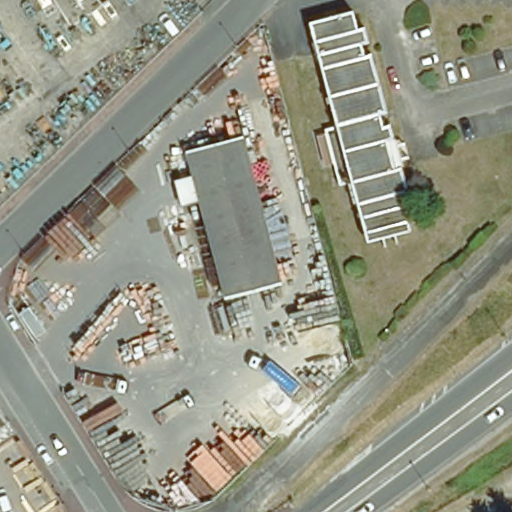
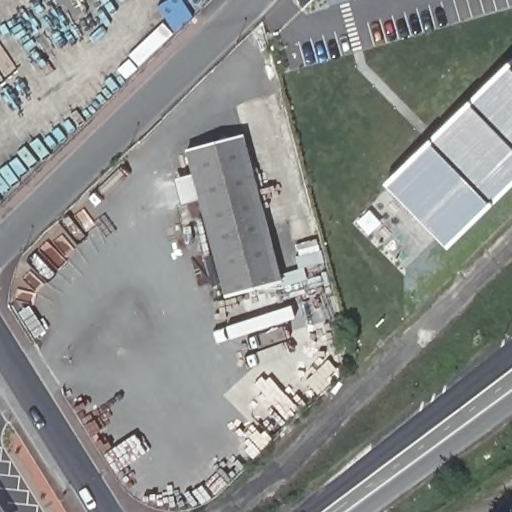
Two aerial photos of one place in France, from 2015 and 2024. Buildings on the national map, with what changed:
demolished [(307,22),(348,12),(353,31),(364,27),(368,43),(359,46),(361,56),(370,53),(371,54),(385,112),(377,115),(379,125),(388,122),(392,139),(383,141),(390,167),(399,166),(405,191),(397,192),(400,204),(408,202),(413,221),(362,232),(349,181),(336,184),(322,129),(334,126),(307,22)]
new [(491,207),(446,251),(443,247),(385,189),(382,186),(427,142),(467,103),(506,64),(509,67),(507,69),(512,74),(512,186),(491,207)]
unchanged [(239,137),(261,232),(284,227),(297,281),(223,297),(220,281),(209,283),(209,275),(204,277),(202,266),(215,262),(198,196),(179,200),(174,176),(193,172),(187,149),(239,137)]

